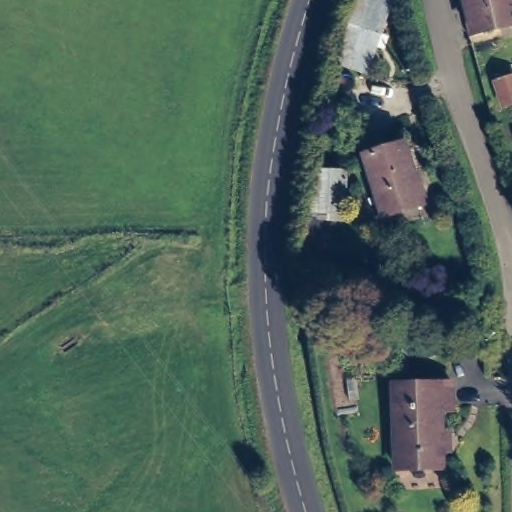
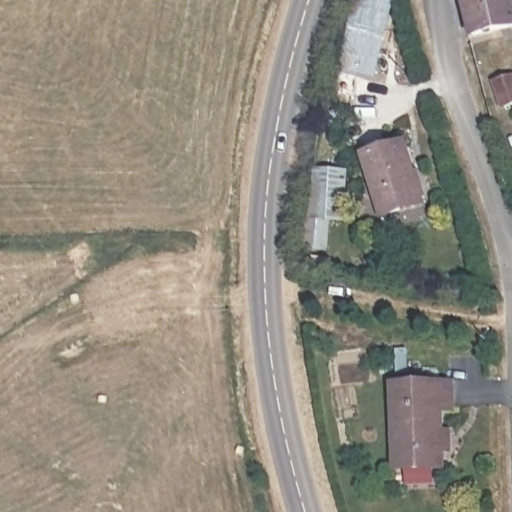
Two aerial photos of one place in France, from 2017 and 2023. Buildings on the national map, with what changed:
unchanged [(375,59),(342,47),(357,0),(390,11),(375,59)]
unchanged [(479,35),(471,0),(512,0),(512,28),(479,35)]
unchanged [(426,210),(382,222),(369,166),(407,154),(426,210)]
unchanged [(452,410),(436,410),(439,474),(394,472),(389,386),(449,384),(452,410)]

